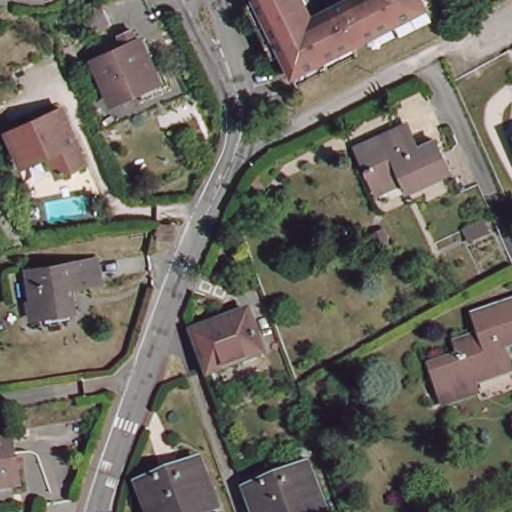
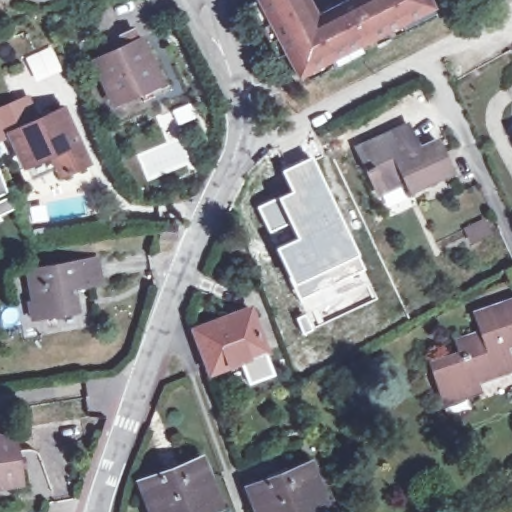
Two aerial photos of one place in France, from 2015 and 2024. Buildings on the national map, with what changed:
unchanged [(104,9),(111,24),(92,32),(80,6),(87,3),(86,1),(85,0),(98,0),(102,10),(104,9)]
unchanged [(352,0),(418,0),(424,12),(363,43),(362,45),(360,47),(358,48),(357,49),(355,50),(352,51),(351,51),(348,51),(290,81),(250,4),(259,0),(296,0),(308,22),(330,12),(341,5),(352,0)]
unchanged [(138,95),(113,107),(94,66),(125,51),(122,45),(120,40),(132,35),(135,39),(137,46),(140,45),(155,78),(158,86),(163,96),(143,105),(138,95)]
new [(37,115),(35,116),(37,120),(9,133),(10,135),(0,140),(0,105),(28,93),(37,115)]
unchanged [(9,133),(37,120),(35,116),(60,105),(85,160),(60,172),(50,153),(37,148),(20,156),(9,133)]
unchanged [(450,176),(407,196),(400,182),(375,193),(366,173),(370,171),(361,150),(407,129),(416,147),(418,152),(436,144),(450,176)]
new [(268,233),(255,206),(275,196),(288,190),(279,169),(311,154),(363,267),(297,299),(272,246),(292,236),(287,225),(268,233)]
new [(0,194),(0,176),(5,191),(0,194)]
unchanged [(464,228),(482,219),(488,232),(470,240),(464,228)]
unchanged [(160,224),(175,224),(174,238),(160,237),(160,224)]
unchanged [(28,308),(33,307),(27,275),(97,263),(100,288),(72,292),(77,315),(40,321),(31,322),(28,308)]
new [(303,312),(297,299),(363,267),(377,298),(301,334),(293,317),(303,312)]
unchanged [(512,368),(475,380),(477,389),(445,401),(437,382),(440,381),(433,362),(460,354),(455,340),(481,331),(475,313),(512,301),(512,343),(504,345),(505,351),(512,368)]
unchanged [(207,368),(192,329),(221,318),(250,308),(252,314),(265,351),(237,361),(208,372),(207,368)]
unchanged [(20,484),(0,487),(0,437),(12,434),(20,484)]
unchanged [(200,459),(217,505),(199,512),(152,512),(140,482),(200,459)]
unchanged [(308,469),(325,511),(324,512),(255,512),(248,493),(308,469)]

